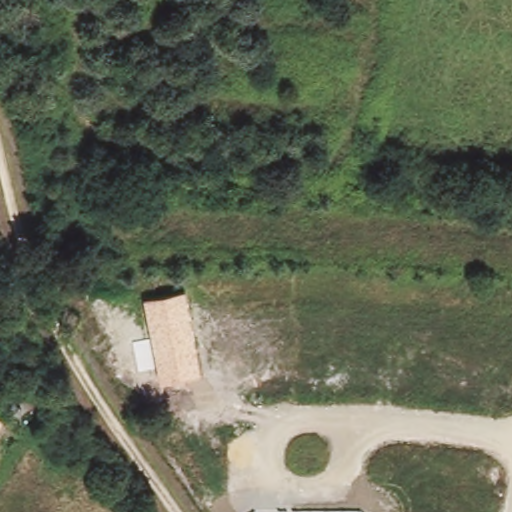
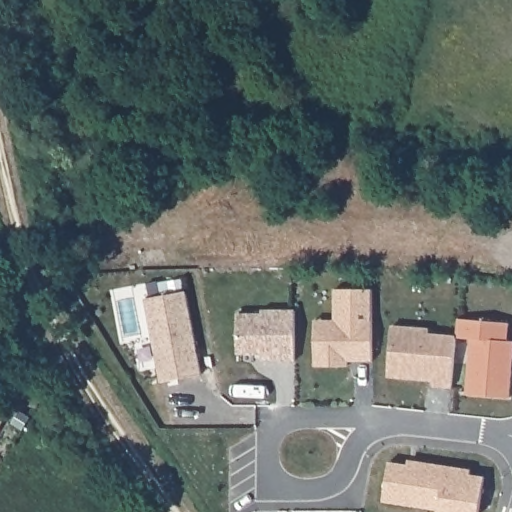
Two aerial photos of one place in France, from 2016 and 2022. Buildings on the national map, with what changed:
new [(350,367),(317,367),(317,337),(316,322),(336,322),(336,290),(375,290),(375,362),(357,362),(350,362),(350,367)]
unchanged [(144,298),(187,291),(200,373),(160,381),(144,298)]
new [(240,309),(263,310),(263,307),(297,306),(297,357),(280,357),(280,355),(264,356),(263,350),(240,351),(240,309)]
new [(510,398),(467,395),(471,338),(456,337),(456,336),(457,319),(508,323),(507,341),(512,341),(512,370),(510,398)]
new [(392,325),(428,328),(427,333),(456,336),(456,337),(452,387),(433,385),(433,379),(387,376),(392,325)]
unchanged [(0,415),(5,417),(0,426),(0,415)]
new [(418,463),(420,458),(473,467),(472,472),(487,474),(481,512),(439,512),(440,508),(385,498),(391,459),(418,463)]

